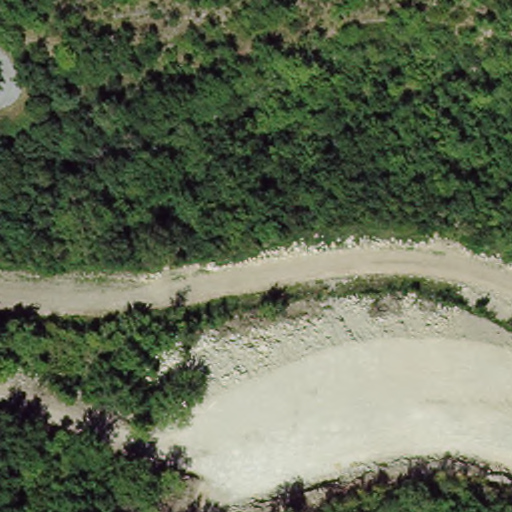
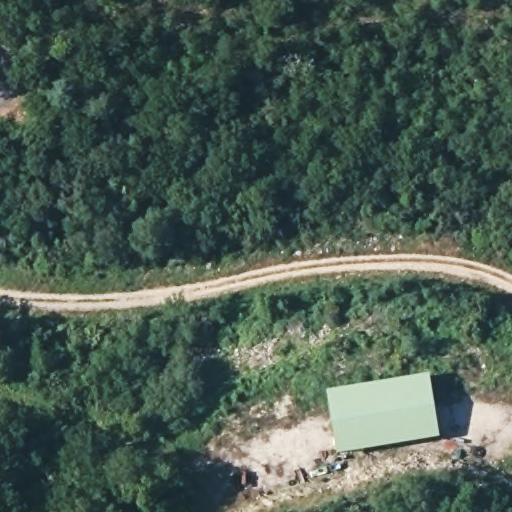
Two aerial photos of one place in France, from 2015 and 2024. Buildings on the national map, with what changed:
new [(427,374),(437,434),(339,452),(329,393),(427,374)]

